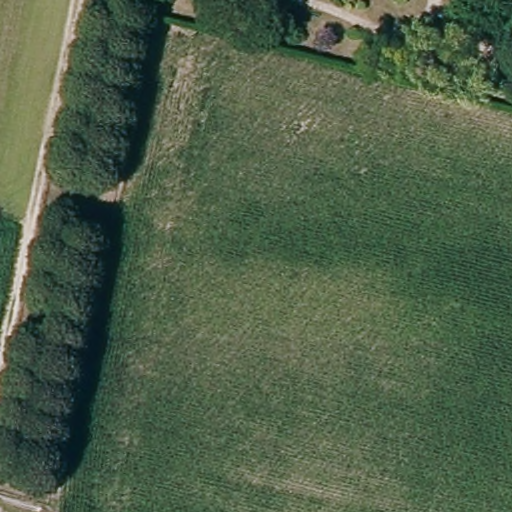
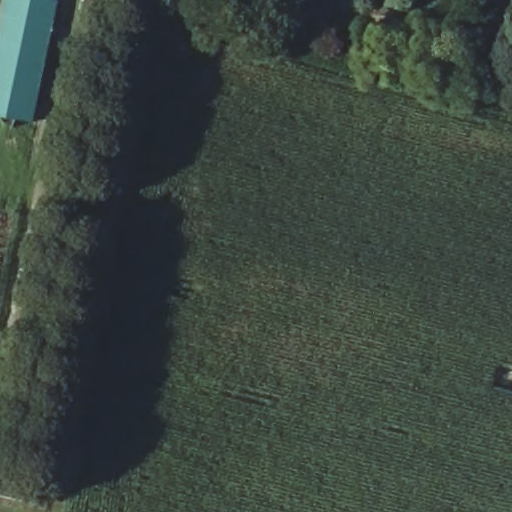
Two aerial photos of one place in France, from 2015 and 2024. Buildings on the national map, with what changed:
new [(0,24),(5,0),(60,0),(34,121),(0,114),(0,24)]
unchanged [(149,26),(153,8),(165,11),(161,28),(149,26)]

